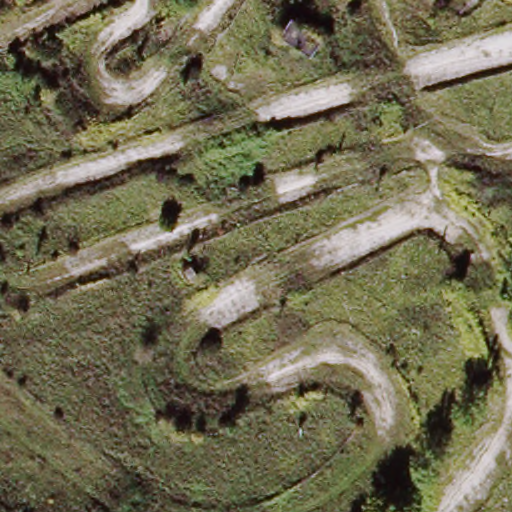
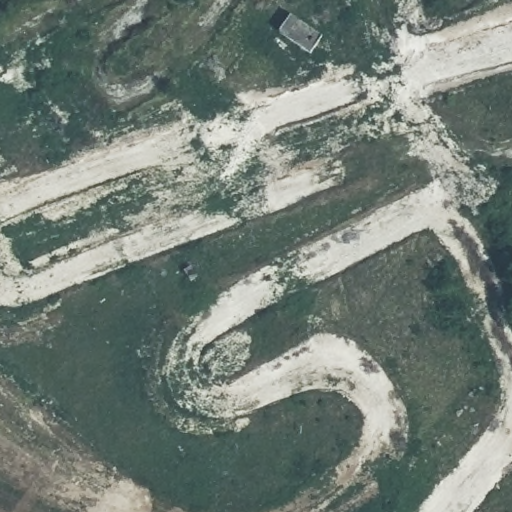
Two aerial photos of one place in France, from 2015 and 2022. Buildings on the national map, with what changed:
unchanged [(289,19),(318,41),(306,57),(276,38),(289,19)]

